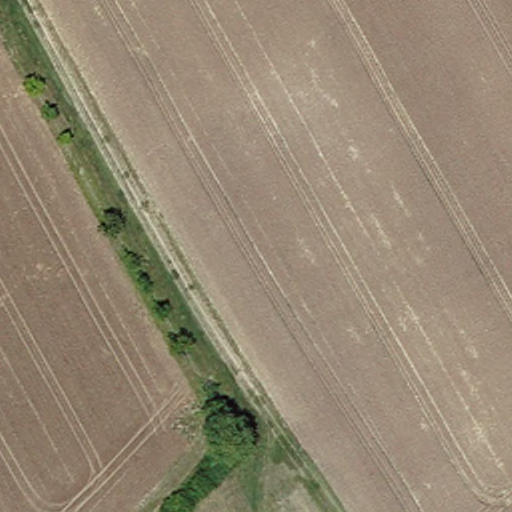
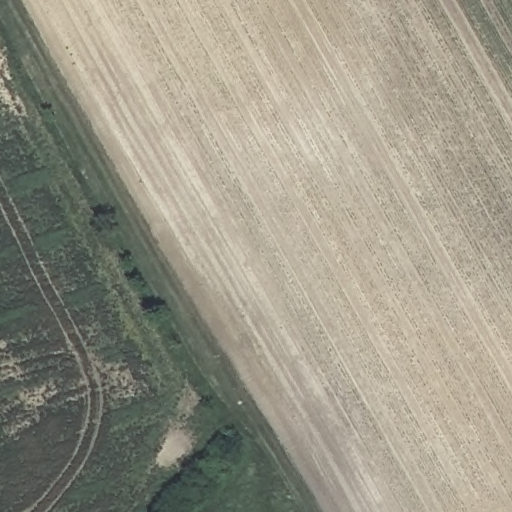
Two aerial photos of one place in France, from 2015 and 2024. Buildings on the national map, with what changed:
[]

